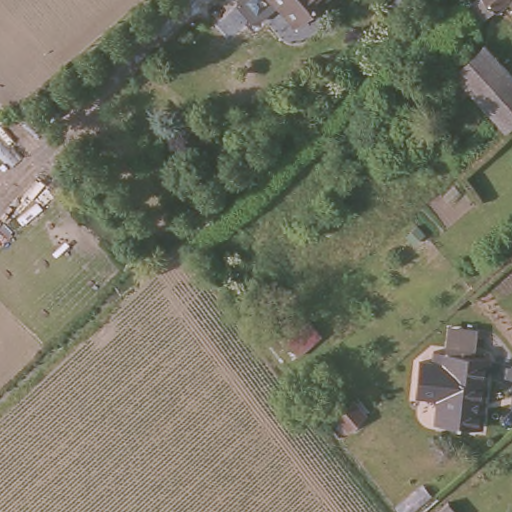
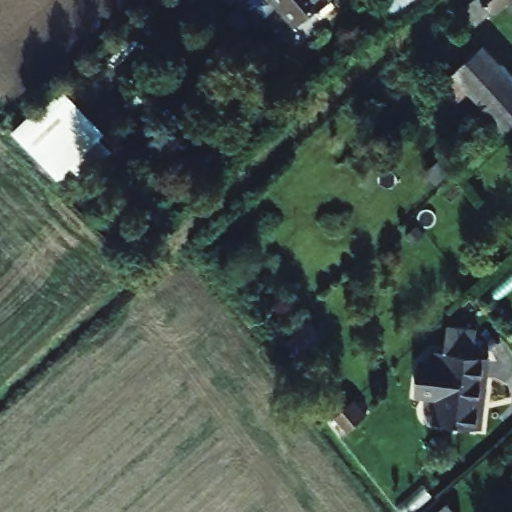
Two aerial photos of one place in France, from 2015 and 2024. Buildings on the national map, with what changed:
unchanged [(291,25),(269,0),(319,0),(291,25)]
unchanged [(469,0),(502,0),(470,26),(458,10),(469,0)]
unchanged [(482,48),(512,84),(512,122),(501,132),(451,74),(482,48)]
new [(105,145),(88,160),(82,155),(60,175),(54,167),(51,170),(13,130),(62,85),(106,131),(100,138),(105,145)]
unchanged [(436,420),(437,399),(417,396),(420,358),(434,359),(434,350),(445,352),(446,323),(477,326),(475,354),(490,357),(484,428),(436,420)]
unchanged [(370,425),(347,440),(335,425),(356,406),(370,425)]
unchanged [(454,512),(444,512),(450,507),(454,512)]

